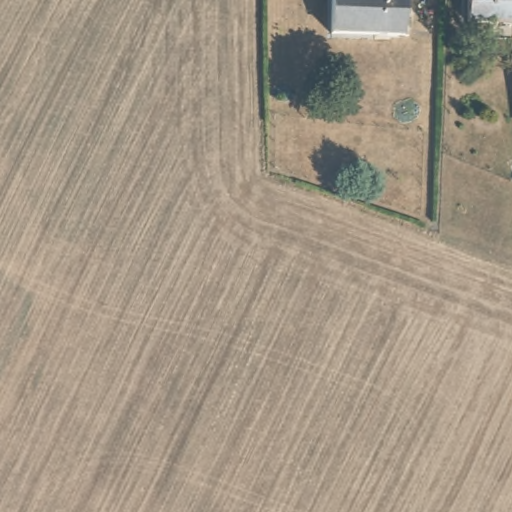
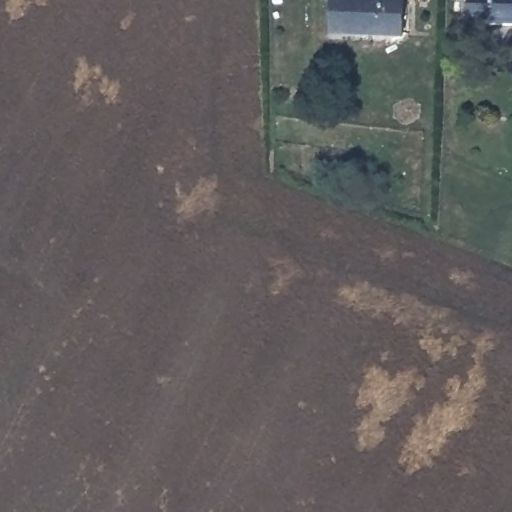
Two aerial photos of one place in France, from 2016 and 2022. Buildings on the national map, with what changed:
unchanged [(404,31),(332,31),(331,0),(403,0),(404,31)]
unchanged [(492,16),(468,14),(469,0),(512,0),(512,22),(493,22),(492,16)]

